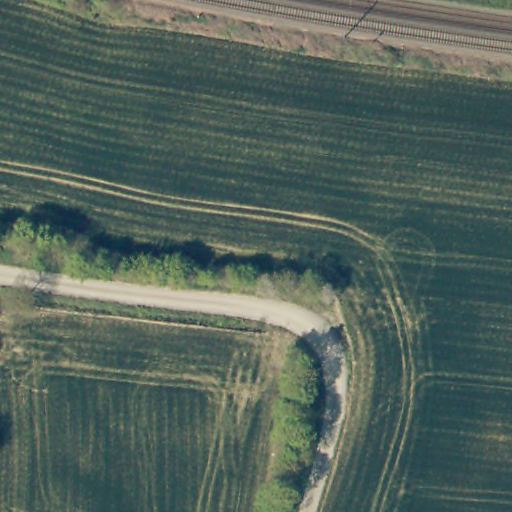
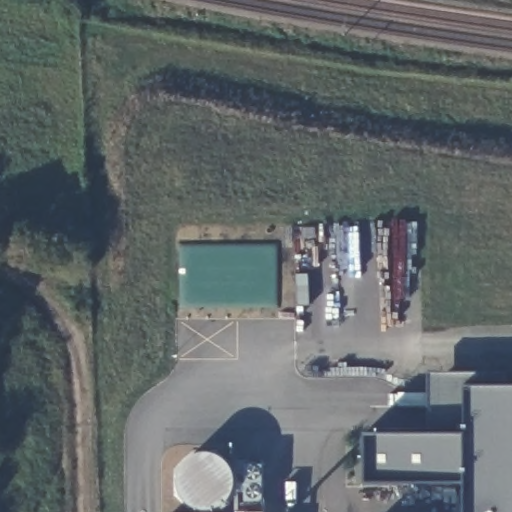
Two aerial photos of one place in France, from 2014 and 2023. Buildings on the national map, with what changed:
new [(465,484),(364,484),(364,433),(429,435),(427,371),(505,373),(505,388),(512,387),(512,512),(465,512),(465,484)]
new [(198,511),(191,509),(184,504),(180,497),(176,489),(175,482),(176,474),(180,467),(187,460),(194,454),(200,453),(210,453),(218,458),(226,463),(262,463),(265,512),(198,512),(198,511)]

